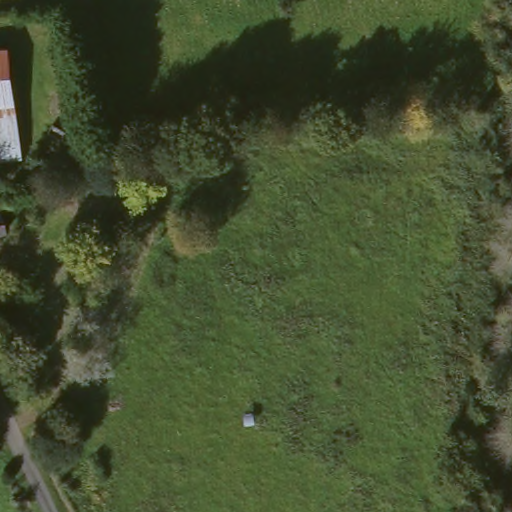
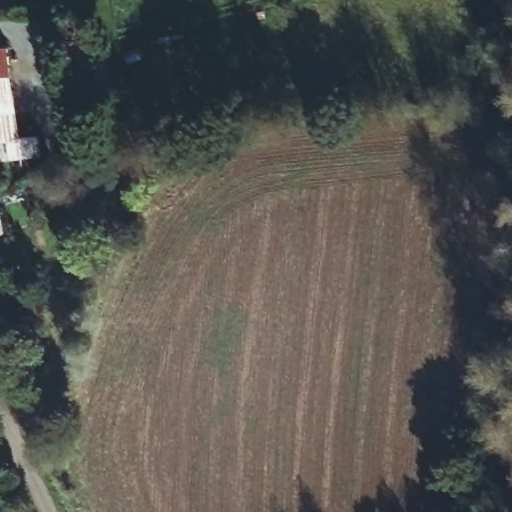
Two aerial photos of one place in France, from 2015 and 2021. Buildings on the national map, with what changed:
unchanged [(6,51),(17,164),(0,165),(0,51),(6,51)]

